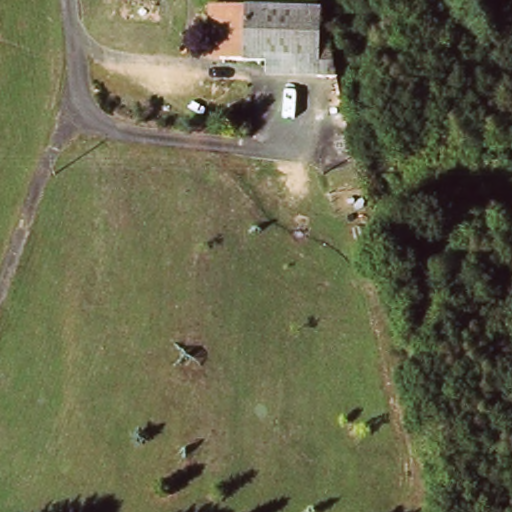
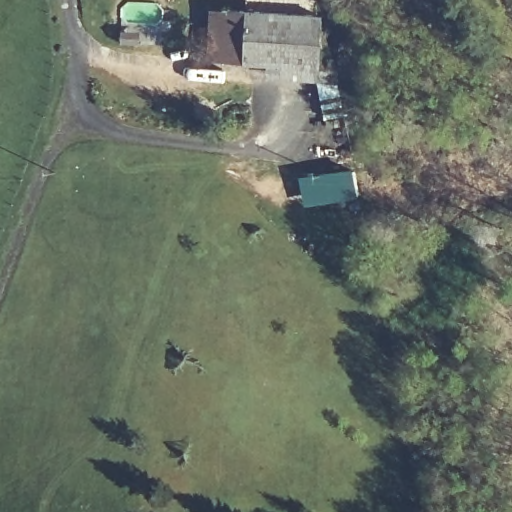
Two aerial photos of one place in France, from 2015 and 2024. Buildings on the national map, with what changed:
unchanged [(246,11),(246,0),(318,0),(321,15),(246,11)]
unchanged [(266,64),(221,61),(207,61),(208,9),(223,9),(246,11),(321,15),(336,81),(316,80),(267,77),(266,64)]
new [(356,168),(363,197),(309,207),(303,177),(356,168)]

